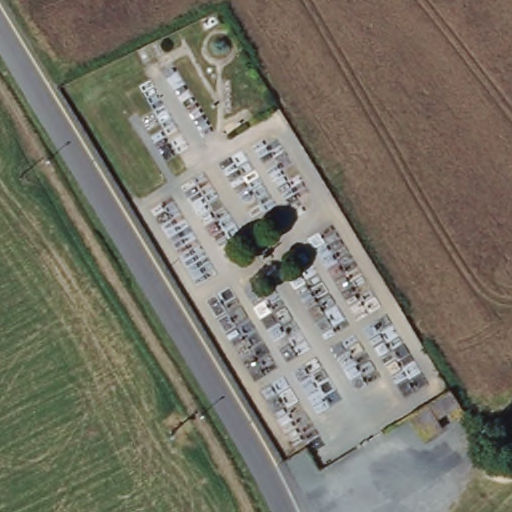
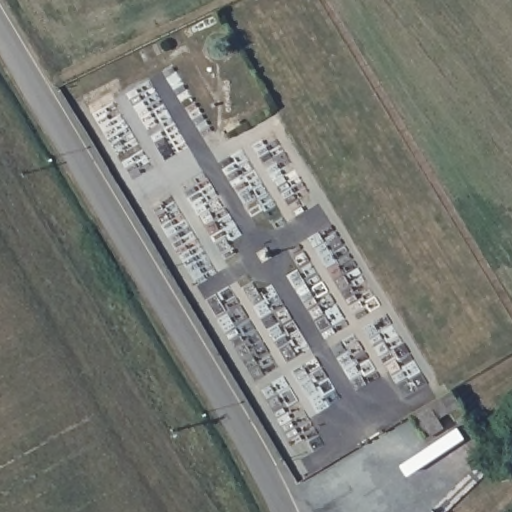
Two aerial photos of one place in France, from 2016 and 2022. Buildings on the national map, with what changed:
unchanged [(445,427),(426,438),(412,415),(453,392),(454,393),(467,415),(457,420),(452,412),(440,418),(445,427)]

